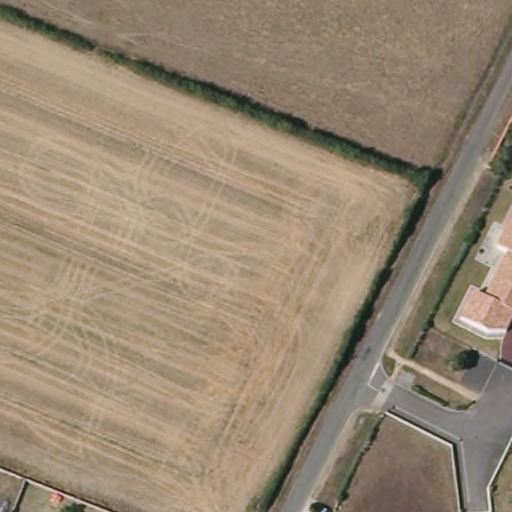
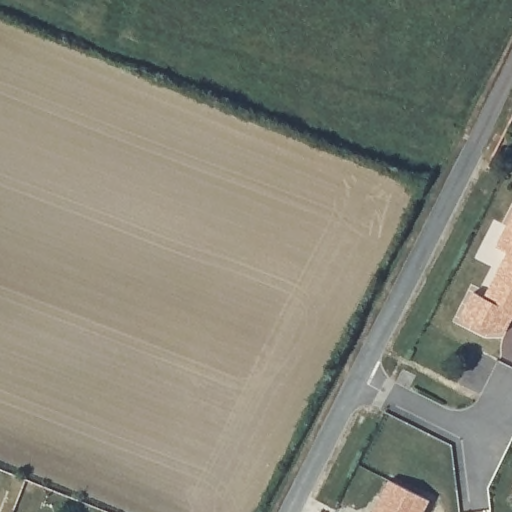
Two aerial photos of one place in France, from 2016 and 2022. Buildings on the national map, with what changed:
unchanged [(512,216),(512,311),(484,298),(507,253),(495,248),(512,216)]
unchanged [(512,321),(506,334),(489,335),(461,319),(473,293),(484,298),(512,311),(512,321)]
new [(372,510),(378,498),(387,482),(427,502),(422,512),(372,512),(372,510)]

